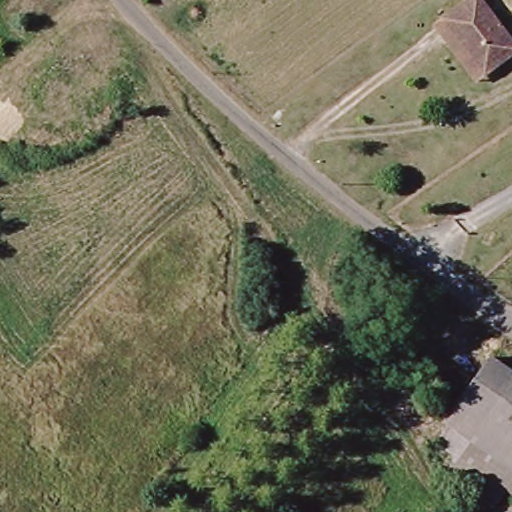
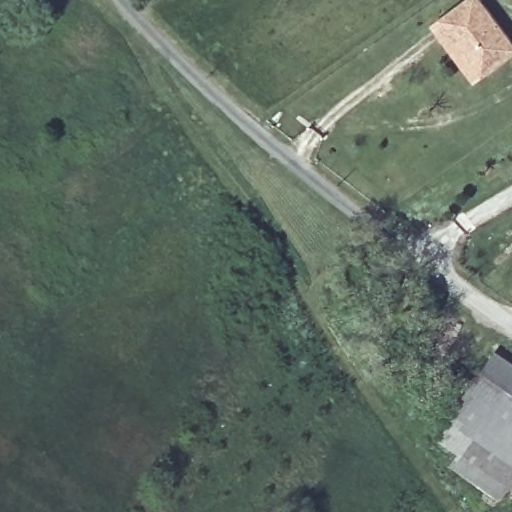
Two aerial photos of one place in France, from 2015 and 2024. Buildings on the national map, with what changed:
unchanged [(468,0),(480,0),(512,44),(512,53),(481,76),(475,81),(434,25),(440,20),(468,0)]
unchanged [(509,374),(488,404),(465,387),(486,358),(509,374)]
unchanged [(512,377),(512,421),(488,404),(509,374),(512,377)]
unchanged [(492,504),(443,468),(451,457),(432,443),(444,425),(440,423),(465,387),(488,404),(512,421),(512,496),(502,489),(492,504)]

